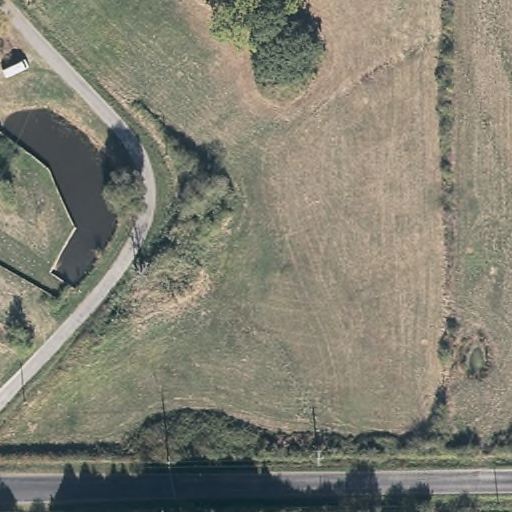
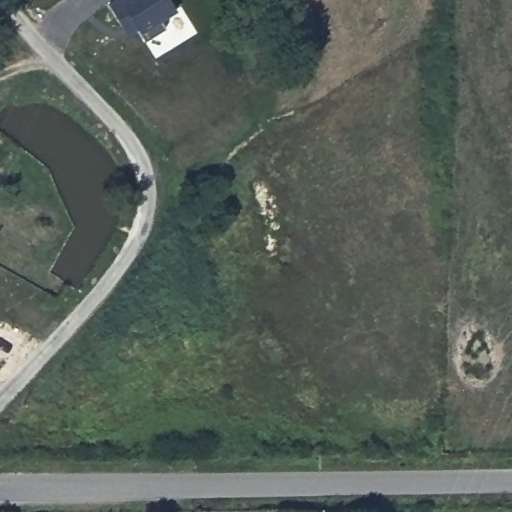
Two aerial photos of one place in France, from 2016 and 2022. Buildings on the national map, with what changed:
new [(140,32),(137,27),(128,35),(108,3),(113,0),(171,0),(177,9),(159,21),(164,28),(145,39),(140,32)]

